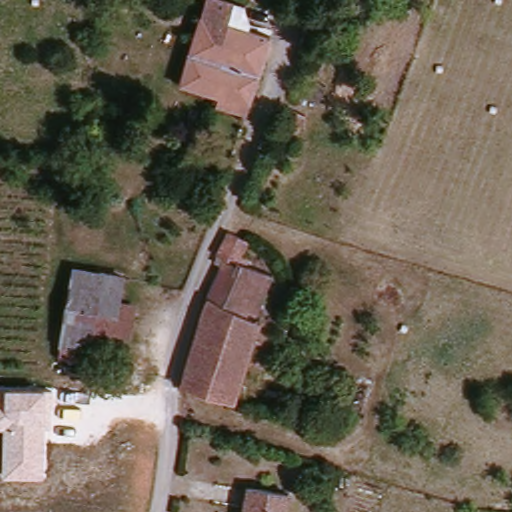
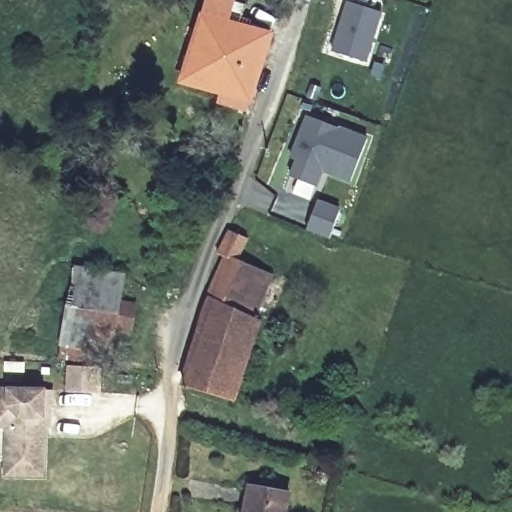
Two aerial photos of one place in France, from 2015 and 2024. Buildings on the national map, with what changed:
unchanged [(278,33),(256,104),(186,82),(214,0),(249,0),(242,21),(278,33)]
new [(349,0),(352,0),(383,10),(367,60),(333,50),(349,0)]
demolished [(266,201),(254,195),(300,111),(311,117),(266,201)]
new [(306,116),(341,128),(342,126),(369,138),(351,182),(323,171),(317,187),(290,177),(297,159),(290,156),(306,116)]
new [(320,202),(343,211),(333,239),(310,229),(320,202)]
unchanged [(237,387),(189,374),(208,294),(231,229),(250,236),(242,255),(254,258),(275,264),(259,307),(237,387)]
unchanged [(135,276),(130,302),(146,307),(138,341),(124,340),(116,363),(87,361),(86,366),(67,360),(81,265),(135,276)]
unchanged [(49,387),(46,477),(5,477),(5,428),(0,428),(0,387),(49,387)]
unchanged [(250,512),(254,485),(292,491),(289,512),(250,512)]

